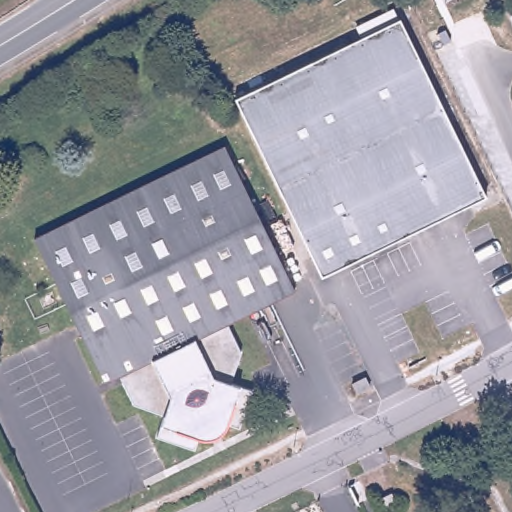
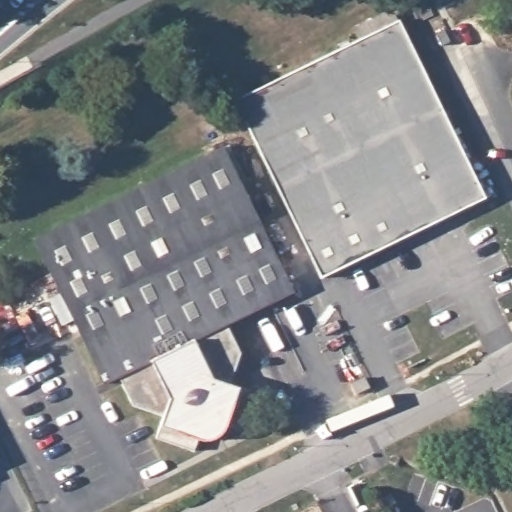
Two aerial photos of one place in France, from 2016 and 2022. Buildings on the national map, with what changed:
unchanged [(239,92),(403,16),(489,192),(326,272),(239,92)]
unchanged [(294,295),(224,326),(240,359),(228,387),(249,394),(234,424),(214,436),(197,438),(190,444),(154,434),(163,412),(131,400),(119,376),(102,383),(34,236),(224,149),(294,295)]
unchanged [(356,382),(362,393),(351,398),(344,387),(356,382)]
unchanged [(386,491),(392,496),(396,504),(398,510),(397,511),(379,511),(374,502),(386,491)]

